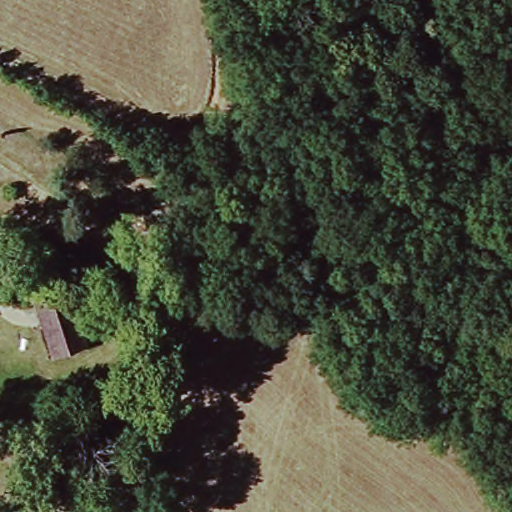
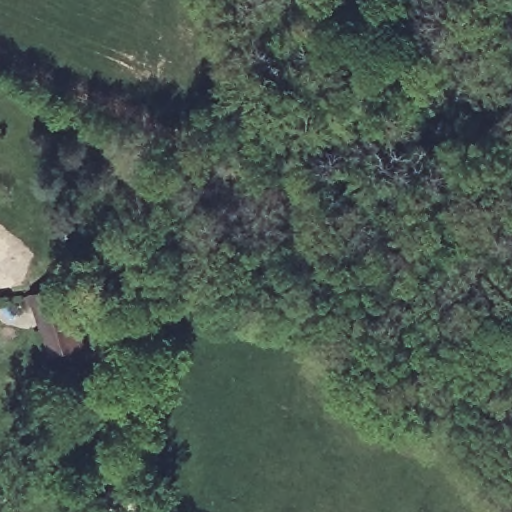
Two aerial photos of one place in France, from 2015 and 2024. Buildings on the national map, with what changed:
unchanged [(50,278),(51,285),(62,283),(81,344),(52,353),(27,279),(50,278)]

